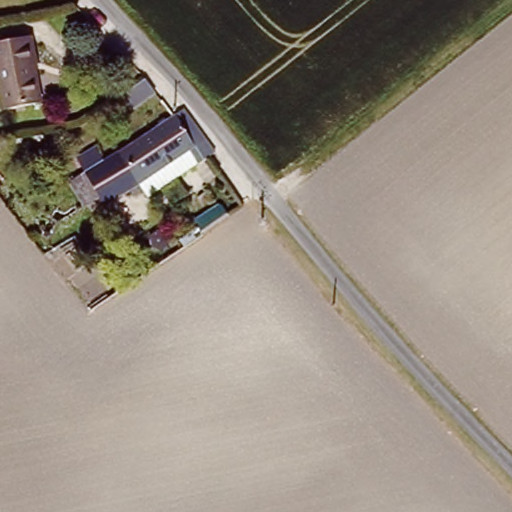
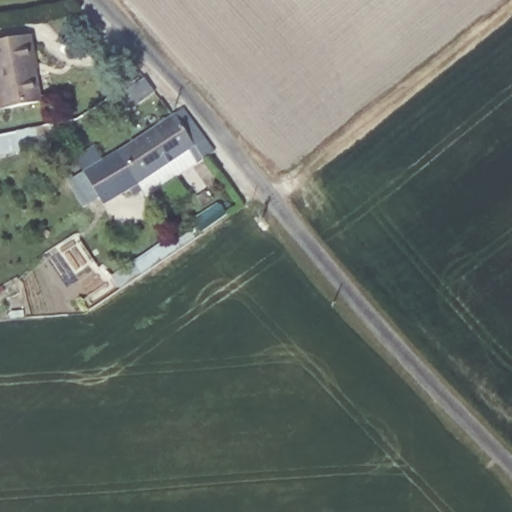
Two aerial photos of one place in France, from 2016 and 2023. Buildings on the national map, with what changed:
unchanged [(31,32),(36,60),(32,61),(39,99),(1,106),(0,101),(0,38),(31,32)]
unchanged [(134,178),(100,200),(77,166),(70,154),(89,141),(97,154),(168,109),(177,102),(208,148),(191,159),(141,190),(134,178)]

